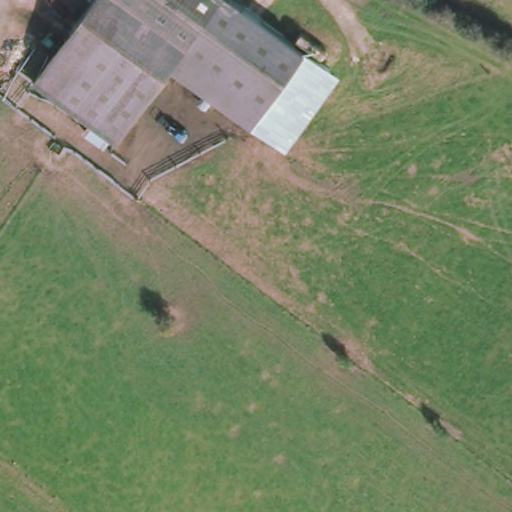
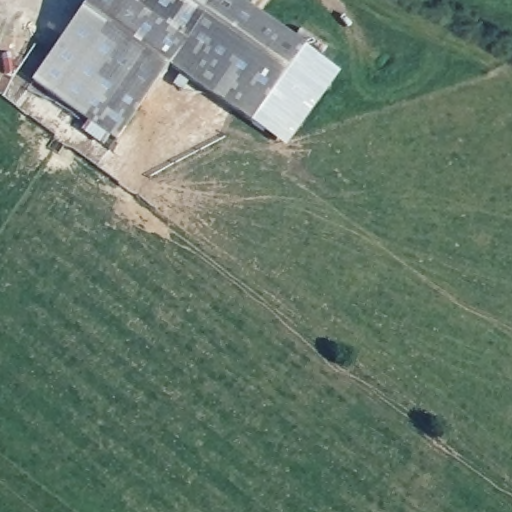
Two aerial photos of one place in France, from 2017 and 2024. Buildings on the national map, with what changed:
unchanged [(254,122),(175,64),(119,141),(37,82),(93,0),(242,0),(309,48),(344,72),(292,149),(254,122)]

